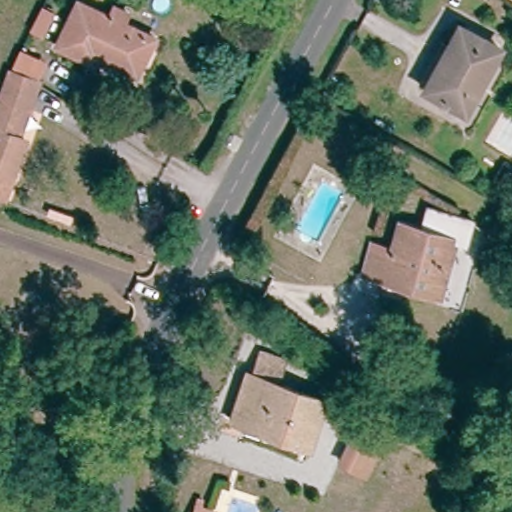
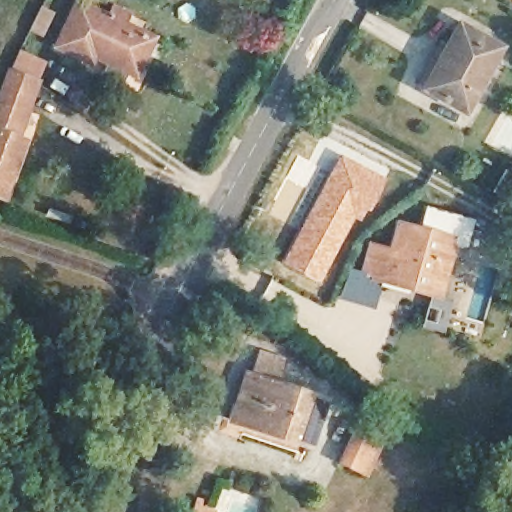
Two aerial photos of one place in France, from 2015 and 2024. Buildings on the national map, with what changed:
unchanged [(113,8),(137,18),(133,30),(158,39),(144,76),(103,61),(100,70),(60,55),(77,9),(107,20),(113,8)]
unchanged [(500,52),(467,114),(425,92),(442,56),(451,58),(465,31),(500,52)]
unchanged [(11,75),(32,84),(39,86),(17,140),(25,144),(3,198),(0,196),(0,104),(11,75)]
new [(338,153),(386,178),(358,222),(353,219),(318,284),(279,263),(338,153)]
new [(297,155),(315,165),(304,187),(286,178),(297,155)]
unchanged [(361,280),(369,250),(395,256),(402,233),(455,249),(452,263),(440,303),(430,300),(410,294),(379,285),(361,280)]
unchanged [(237,394),(244,372),(252,375),(261,353),(287,363),(280,386),(331,403),(313,452),(247,427),(228,420),(237,394)]
unchanged [(375,464),(359,459),(347,453),(358,422),(390,433),(375,464)]
unchanged [(210,512),(189,512),(191,504),(210,512)]

